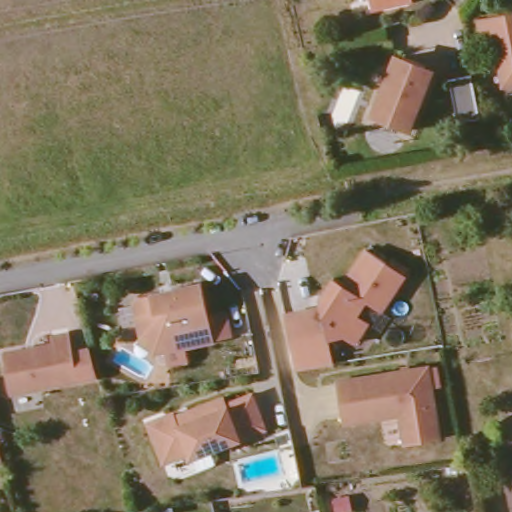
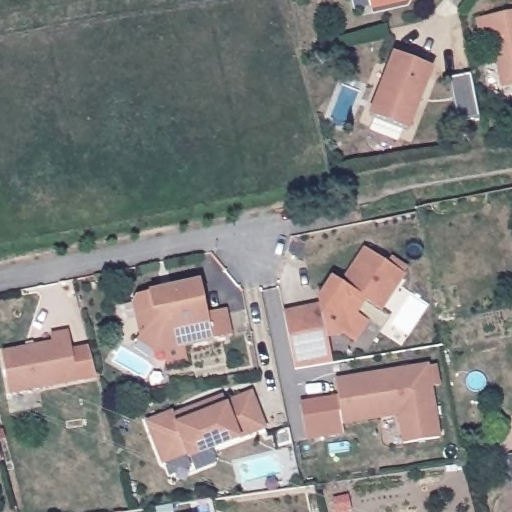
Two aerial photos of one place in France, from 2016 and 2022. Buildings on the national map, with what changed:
unchanged [(371,11),(369,0),(407,0),(405,4),(371,11)]
unchanged [(494,36),(481,38),(477,21),(512,13),(512,86),(504,88),(494,36)]
unchanged [(374,118),(392,68),(397,54),(404,56),(428,65),(434,68),(429,83),(412,131),(406,129),(400,143),(375,134),(380,120),(374,118)]
unchanged [(459,125),(450,81),(473,76),(482,121),(459,125)]
unchanged [(358,348),(341,337),(329,338),(334,365),(296,371),(285,315),(331,306),(329,289),(336,280),(344,286),(369,252),(406,278),(381,314),(366,303),(356,316),(372,327),(358,348)]
unchanged [(168,366),(164,351),(154,353),(138,342),(141,336),(135,305),(141,297),(164,292),(173,290),(202,284),(209,320),(225,317),(229,337),(213,340),(213,342),(184,348),(188,362),(168,366)]
unchanged [(94,379),(74,383),(7,396),(0,359),(0,354),(50,345),(48,337),(65,334),(69,353),(87,350),(94,379)]
unchanged [(439,440),(403,445),(399,416),(341,424),(335,381),(428,367),(439,440)]
unchanged [(186,456),(161,466),(146,426),(171,416),(173,419),(187,413),(222,400),(224,406),(250,397),(264,432),(188,461),(186,456)]
unchanged [(347,512),(335,512),(333,499),(335,499),(348,496),(351,511),(347,512)]

